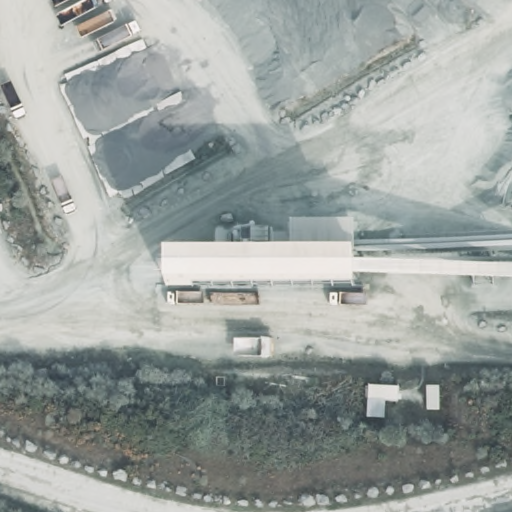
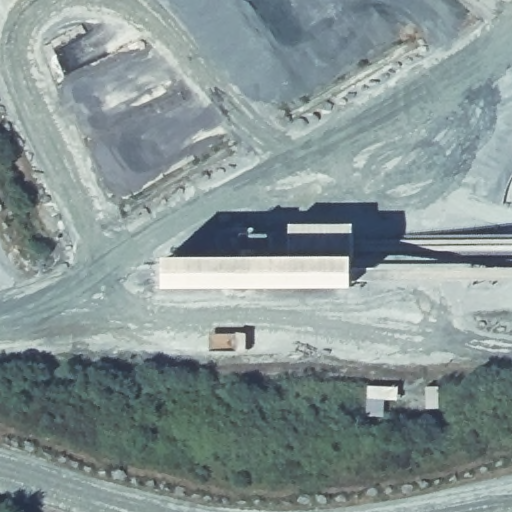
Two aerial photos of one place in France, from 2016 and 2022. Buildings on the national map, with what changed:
unchanged [(290,256),(290,223),(356,225),(357,256),(358,292),(167,290),(166,254),(290,256)]
unchanged [(402,386),(401,401),(367,400),(368,384),(402,386)]

